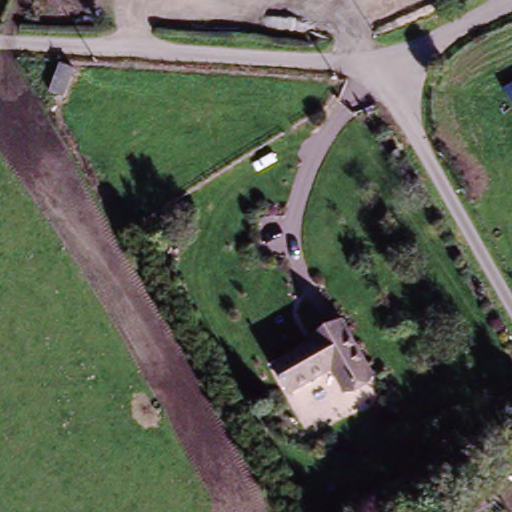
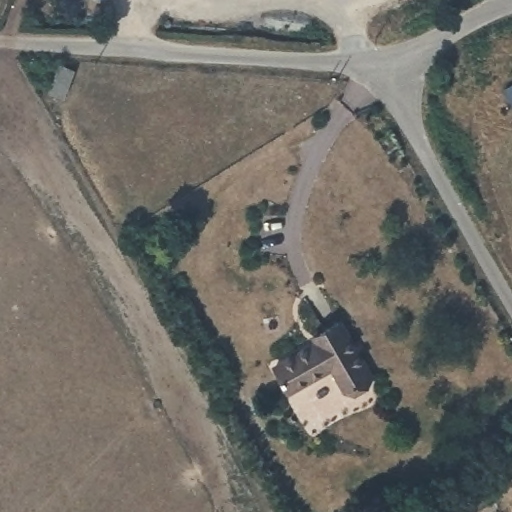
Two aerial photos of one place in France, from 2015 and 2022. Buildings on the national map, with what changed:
unchanged [(82,75),(71,103),(55,97),(68,69),(82,75)]
unchanged [(315,329),(342,315),(374,374),(347,389),(334,366),(291,390),(277,362),(320,338),(315,329)]

